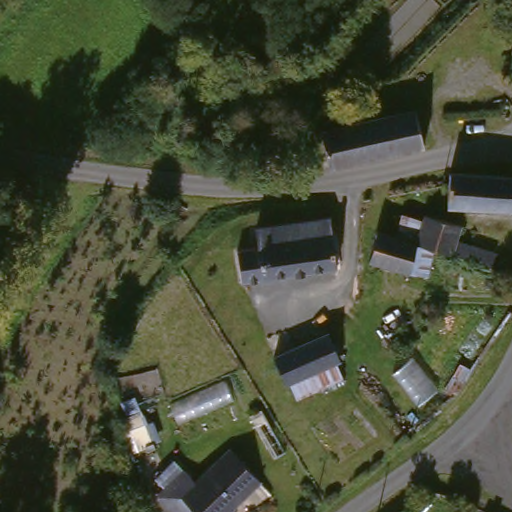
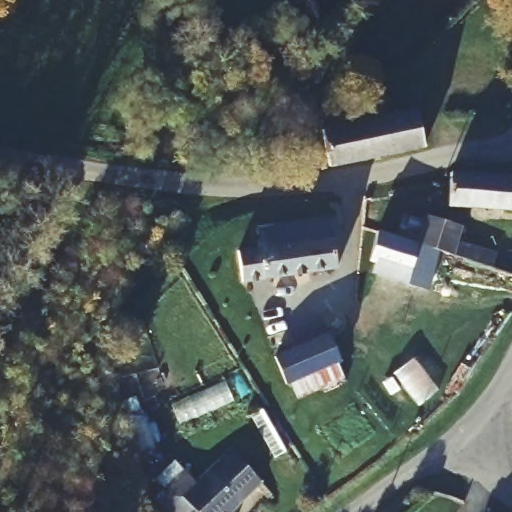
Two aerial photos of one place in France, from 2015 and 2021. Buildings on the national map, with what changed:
unchanged [(316,128),(422,107),(425,119),(429,146),(323,165),(316,128)]
unchanged [(444,204),(444,182),(447,170),(512,173),(512,208),(444,204)]
unchanged [(452,251),(435,247),(424,273),(410,270),(409,272),(369,258),(380,228),(415,239),(427,210),(461,223),(452,251)]
unchanged [(338,266),(239,278),(236,245),(259,243),(258,230),(331,220),(338,266)]
unchanged [(345,371),(293,391),(280,361),(335,340),(345,371)]
unchanged [(169,486),(163,476),(178,463),(186,473),(194,482),(230,453),(258,485),(228,512),(177,512),(161,493),(169,486)]
unchanged [(503,512),(488,512),(489,507),(493,508),(503,512)]

